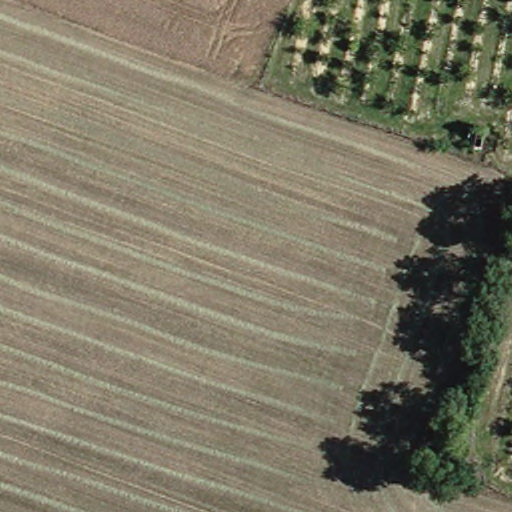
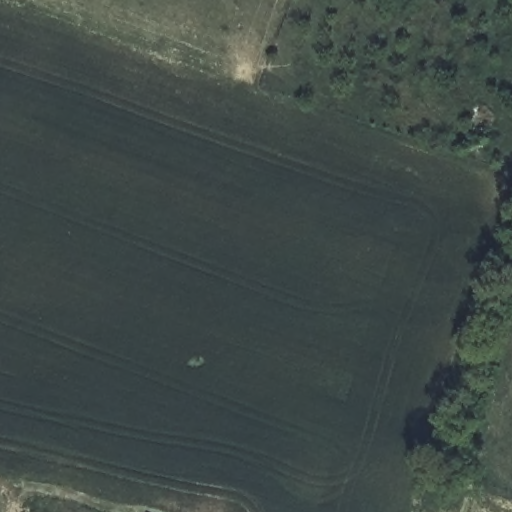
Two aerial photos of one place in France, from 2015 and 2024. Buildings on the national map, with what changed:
unchanged [(469,130),(474,114),(487,117),(483,133),(469,130)]

